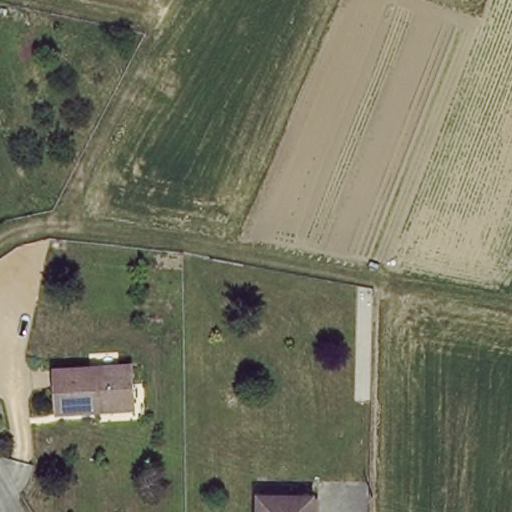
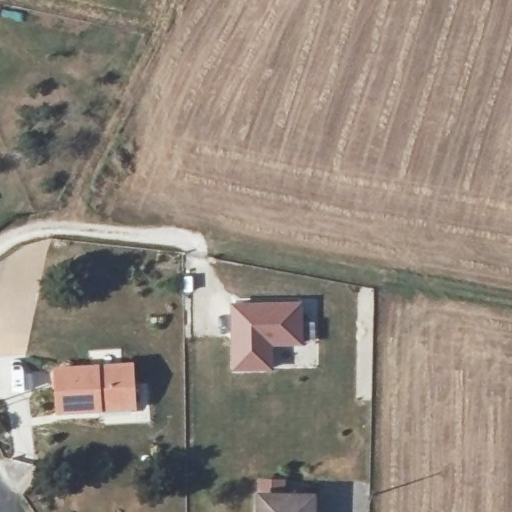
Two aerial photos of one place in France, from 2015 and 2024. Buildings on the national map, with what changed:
new [(230,301),(301,302),(302,346),(273,346),(273,371),(231,371),(230,301)]
unchanged [(95,407),(95,413),(65,415),(63,372),(133,367),(136,404),(95,407)]
unchanged [(311,492),(311,512),(258,512),(258,491),(311,492)]

